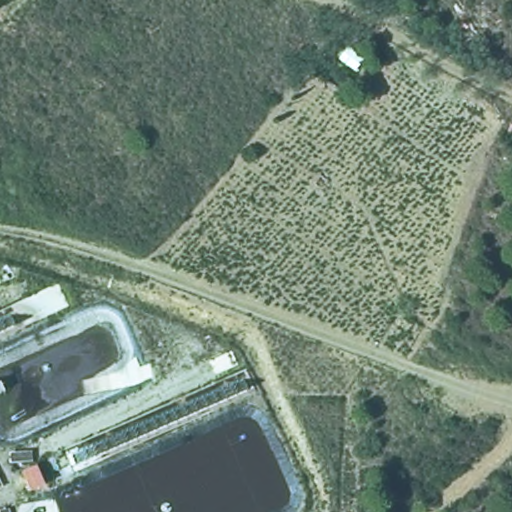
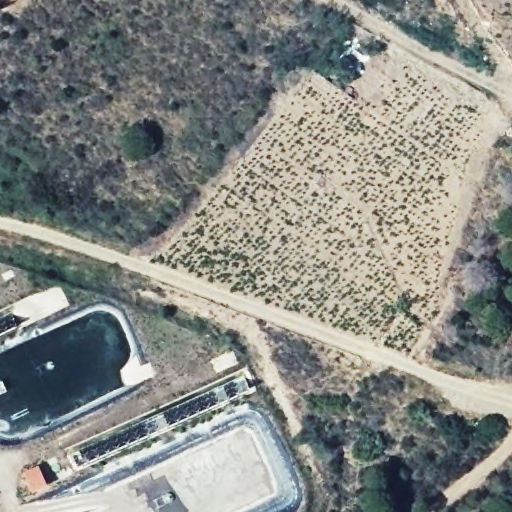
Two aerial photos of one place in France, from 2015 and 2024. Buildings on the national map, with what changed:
unchanged [(335,63),(350,46),(374,66),(352,79),(335,63)]
unchanged [(505,143),(509,122),(512,123),(512,145),(505,143)]

